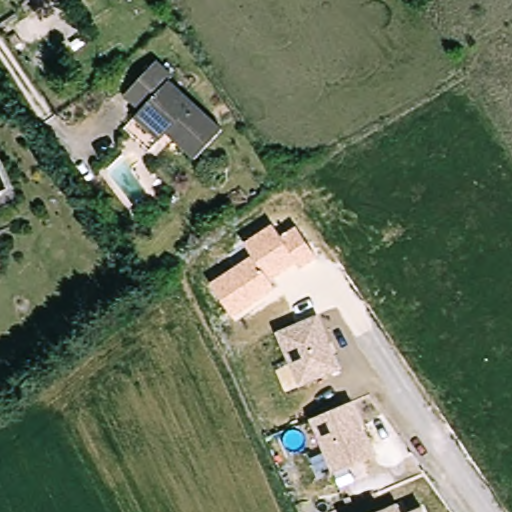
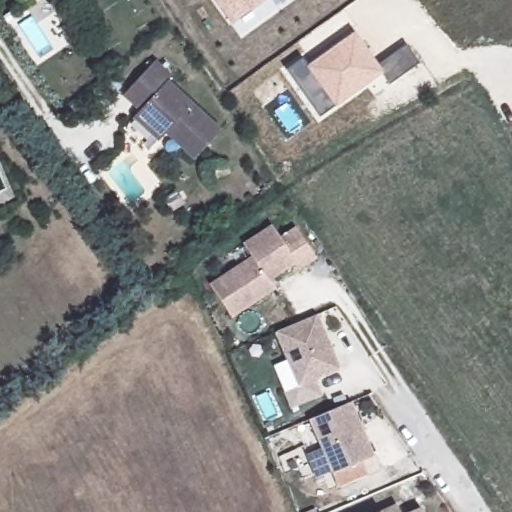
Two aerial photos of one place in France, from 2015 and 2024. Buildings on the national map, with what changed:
new [(354,31),(378,64),(384,72),(336,108),(307,66),(354,31)]
new [(378,64),(405,45),(417,64),(391,82),(378,64)]
new [(336,108),(320,119),(286,70),(302,59),(336,108)]
unchanged [(137,118),(145,109),(129,94),(160,60),(176,75),(172,79),(227,128),(200,158),(171,132),(163,141),(137,118)]
unchanged [(316,260),(300,270),(296,263),(269,280),(275,290),(232,318),(210,284),(251,257),(243,244),(272,224),(280,237),(295,227),(316,260)]
unchanged [(341,370),(285,392),(276,370),(288,365),(275,332),(318,314),(341,370)]
unchanged [(373,454),(331,473),(309,420),(351,402),(373,454)]
unchanged [(401,512),(378,512),(397,504),(401,512)]
unchanged [(420,507),(423,512),(408,512),(420,507)]

